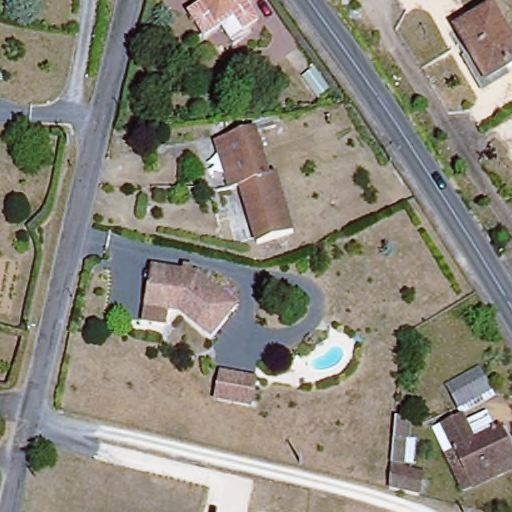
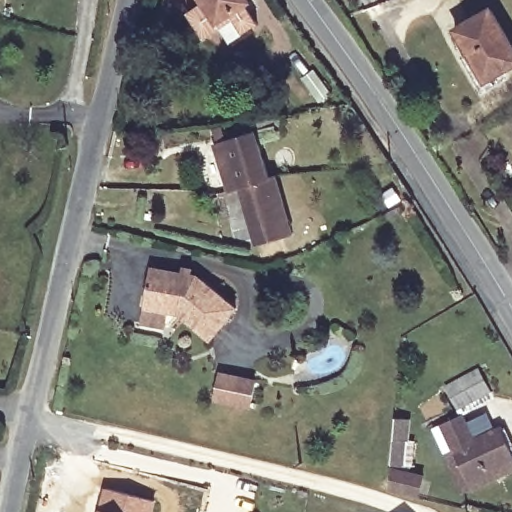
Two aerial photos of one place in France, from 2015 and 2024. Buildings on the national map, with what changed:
unchanged [(238,39),(227,21),(210,31),(196,7),(208,0),(251,0),(264,23),(238,39)]
unchanged [(492,77),(462,25),(495,6),(512,35),(512,65),(492,77)]
unchanged [(232,189),(217,140),(258,128),(273,175),(244,185),(232,189)]
unchanged [(244,185),(273,175),(280,173),(297,231),(262,242),(244,185)]
unchanged [(171,312),(168,326),(143,321),(156,267),(201,277),(237,303),(214,337),(184,316),(171,312)]
unchanged [(483,370),(493,392),(463,407),(452,386),(483,370)]
unchanged [(218,372),(255,380),(250,407),(213,400),(218,372)]
unchanged [(491,413),(498,429),(504,426),(512,443),(512,471),(467,493),(448,454),(436,430),(443,427),(464,416),(468,425),(491,413)]
unchanged [(393,485),(397,436),(411,437),(408,467),(427,472),(422,492),(393,485)]
new [(103,487),(157,500),(154,512),(97,512),(103,487)]

